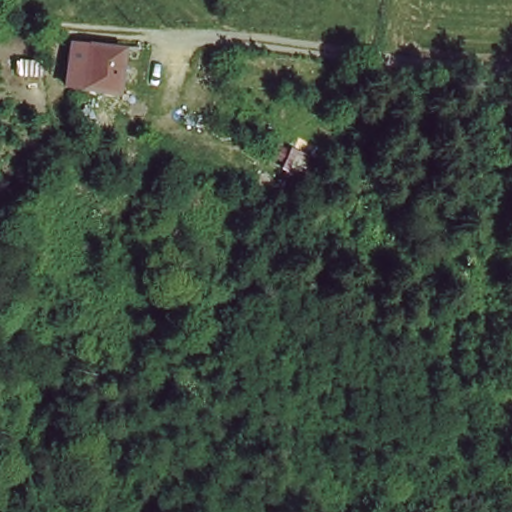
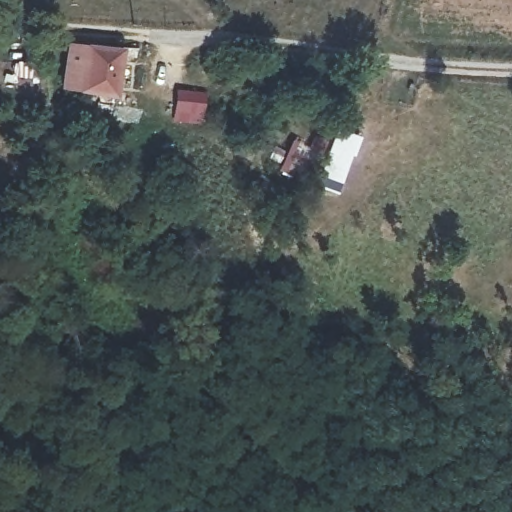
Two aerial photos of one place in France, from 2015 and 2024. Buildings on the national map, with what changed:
unchanged [(118,54),(117,101),(68,97),(75,52),(118,54)]

